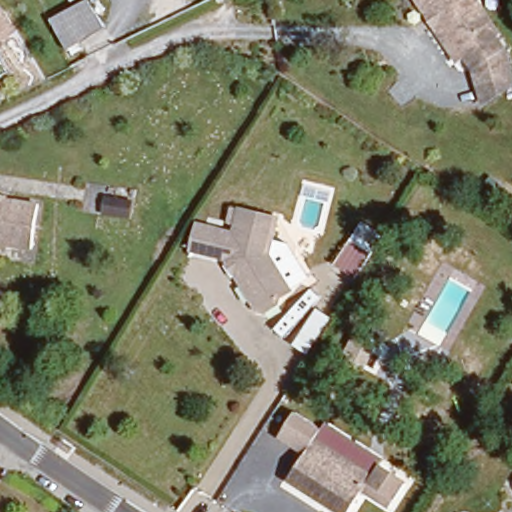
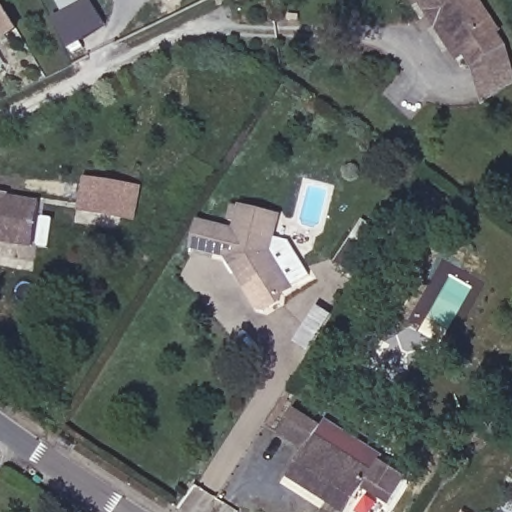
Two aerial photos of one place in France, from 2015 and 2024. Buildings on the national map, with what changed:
unchanged [(106,25),(83,41),(86,49),(75,54),(53,19),(91,0),(106,25)]
unchanged [(414,0),(474,0),(501,38),(494,43),(467,62),(461,66),(414,0)]
new [(5,16),(16,34),(0,44),(0,12),(5,16)]
unchanged [(473,70),(467,62),(494,43),(499,51),(512,73),(512,88),(491,100),(473,70)]
new [(135,223),(77,213),(82,180),(141,191),(135,223)]
unchanged [(42,206),(33,249),(0,243),(0,198),(42,206)]
unchanged [(238,232),(242,210),(277,218),(272,254),(296,289),(270,314),(239,271),(240,261),(194,253),(195,248),(208,227),(238,232)]
unchanged [(379,245),(360,277),(341,263),(360,233),(379,245)]
unchanged [(369,461),(338,512),(333,512),(298,489),(330,436),(369,461)]

